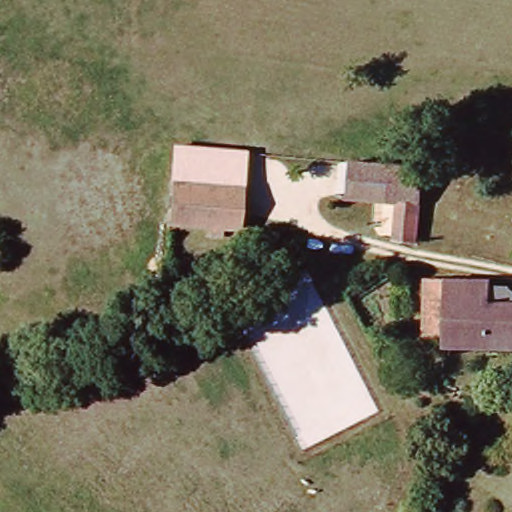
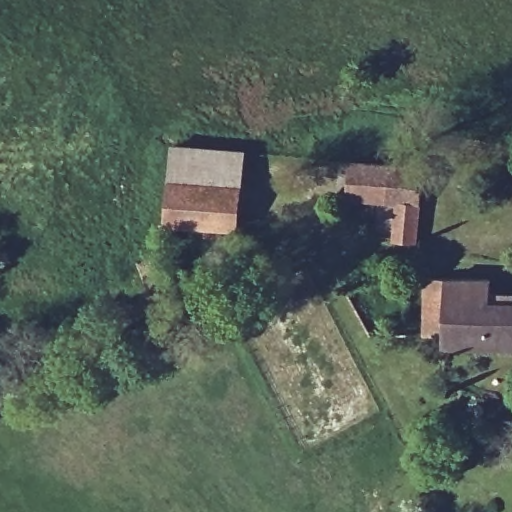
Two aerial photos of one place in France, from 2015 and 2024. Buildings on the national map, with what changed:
unchanged [(245,149),(243,184),(167,178),(171,142),(245,149)]
unchanged [(423,242),(395,240),(392,201),(349,195),(354,158),(430,165),(423,242)]
unchanged [(172,223),(176,185),(243,190),(239,229),(172,223)]
unchanged [(512,348),(450,346),(450,336),(428,336),(430,278),(491,280),(491,287),(507,288),(506,300),(512,300),(512,348)]

